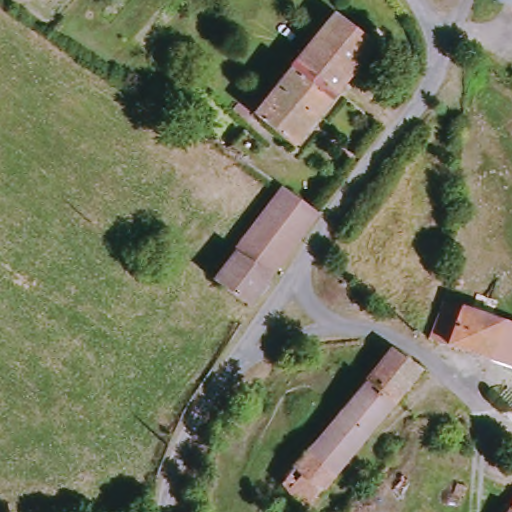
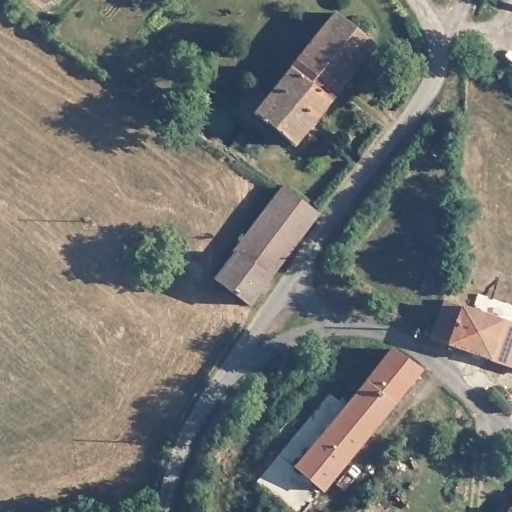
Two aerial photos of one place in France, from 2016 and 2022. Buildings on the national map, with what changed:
unchanged [(503,0),(512,0),(512,3),(503,0)]
unchanged [(337,11),(381,45),(335,97),(294,62),(337,11)]
unchanged [(335,97),(297,145),(254,115),(294,62),(335,97)]
unchanged [(270,286),(256,305),(223,276),(290,186),(325,212),(270,286)]
unchanged [(467,302),(477,307),(512,324),(512,369),(439,337),(458,300),(467,302)]
unchanged [(392,346),(424,366),(371,435),(340,412),(392,346)]
unchanged [(282,486),(297,467),(340,412),(371,435),(342,472),(327,491),(311,510),(282,486)]

